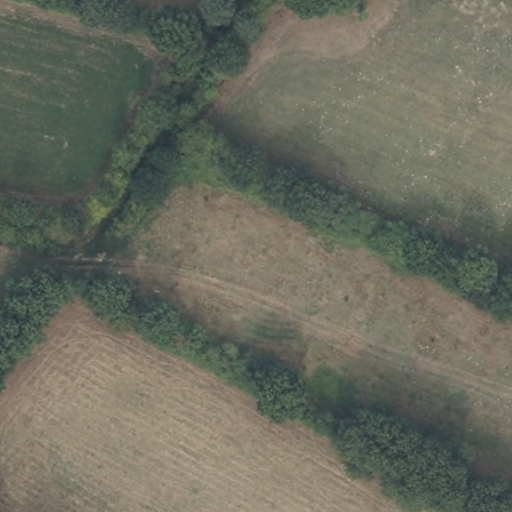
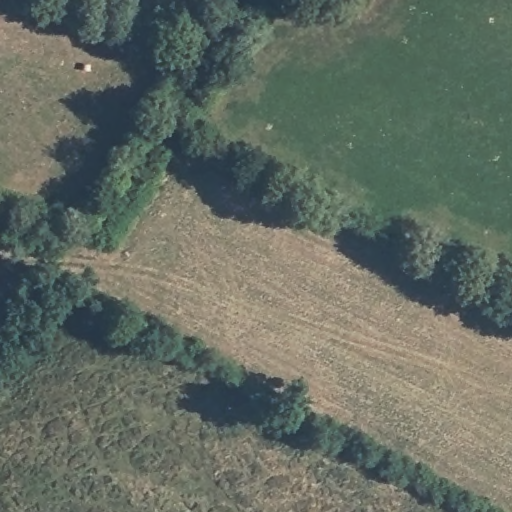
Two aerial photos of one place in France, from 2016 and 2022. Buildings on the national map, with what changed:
[]

